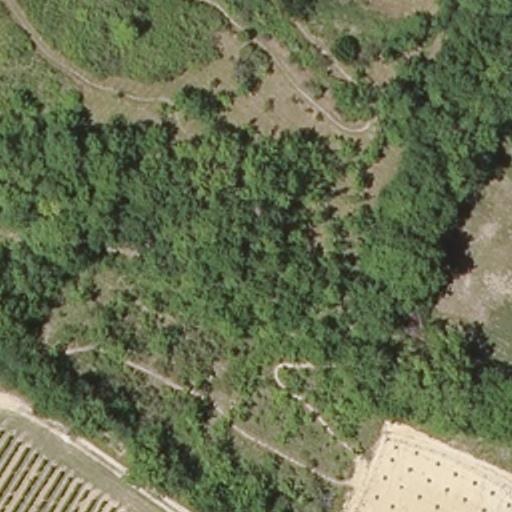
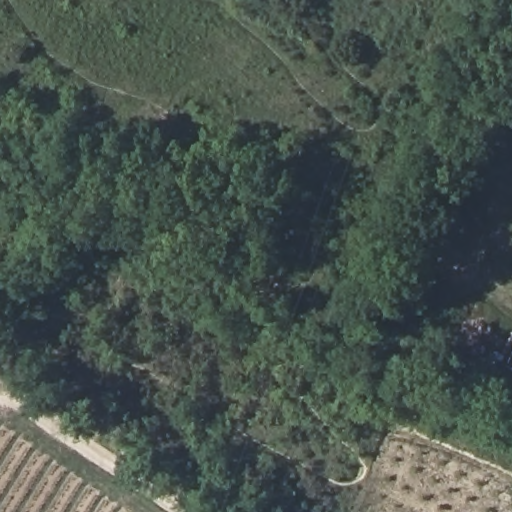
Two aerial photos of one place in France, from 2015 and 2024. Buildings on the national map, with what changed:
[]

